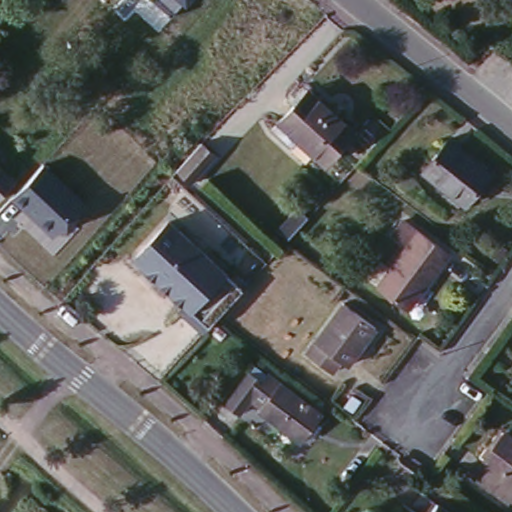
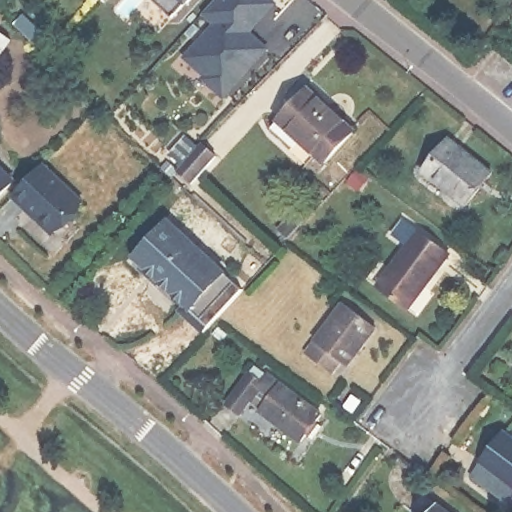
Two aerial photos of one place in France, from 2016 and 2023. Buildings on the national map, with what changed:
unchanged [(170,14),(154,0),(190,0),(186,4),(170,14)]
new [(211,0),(275,0),(250,26),(269,47),(224,94),(175,42),(211,0)]
unchanged [(281,129),(287,122),(285,120),(313,90),(356,129),(328,160),(305,139),(299,145),(281,129)]
unchanged [(419,165),(447,135),(487,172),(459,203),(419,165)]
unchanged [(200,142),(216,157),(191,184),(176,169),(200,142)]
unchanged [(57,237),(13,199),(44,164),(86,204),(57,237)]
unchanged [(13,180),(0,194),(0,169),(13,180)]
unchanged [(130,256),(162,220),(239,288),(211,318),(205,325),(130,256)]
unchanged [(406,307),(377,286),(408,246),(396,236),(407,222),(450,256),(423,292),(409,310),(406,307)]
unchanged [(300,348),(338,300),(370,325),(340,361),(334,356),(325,367),(300,348)]
unchanged [(263,413),(264,411),(253,401),(241,416),(227,405),(251,375),(264,385),(270,377),(325,417),(304,444),(263,413)]
unchanged [(500,497),(467,471),(499,430),(512,439),(512,486),(510,484),(500,497)]
unchanged [(434,501),(449,512),(426,512),(434,501)]

